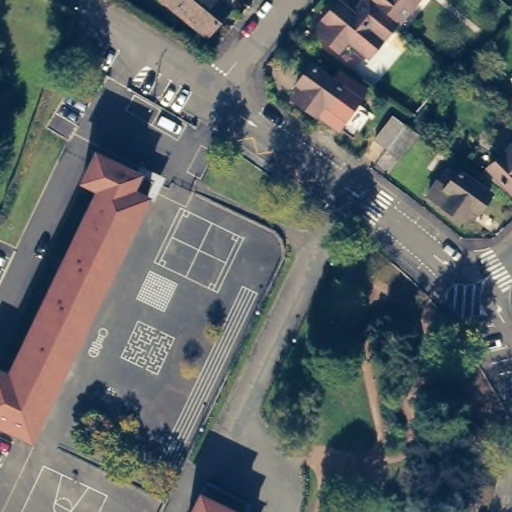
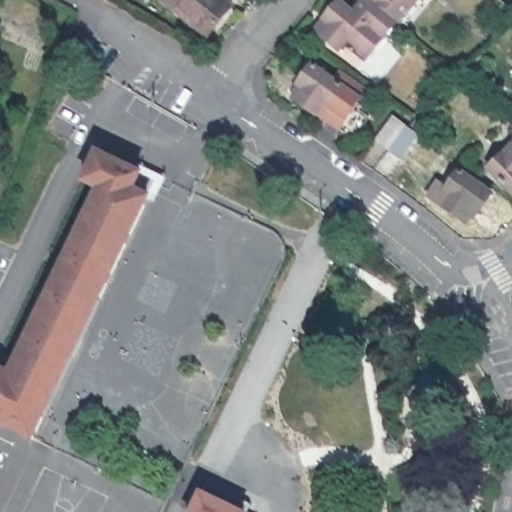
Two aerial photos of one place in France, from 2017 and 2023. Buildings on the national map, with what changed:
unchanged [(208,31),(170,0),(233,0),(208,31)]
unchanged [(334,9),(342,0),(359,0),(364,4),(367,0),(393,0),(408,12),(393,29),(392,29),(380,43),(366,32),(364,34),(358,29),(349,40),(329,23),(338,12),(334,9)]
unchanged [(393,0),(419,0),(409,13),(408,12),(393,0)]
unchanged [(299,74),(312,55),(344,78),(331,97),(324,91),(316,104),(294,88),(303,77),(299,74)]
unchanged [(401,154),(389,145),(376,136),(394,111),(407,121),(408,121),(419,129),(401,154)]
unchanged [(506,156),(493,143),(509,127),(512,131),(512,187),(494,168),(506,156)]
unchanged [(84,181),(97,154),(136,173),(139,174),(131,190),(148,198),(33,438),(0,422),(0,371),(10,375),(100,188),(84,181)]
unchanged [(434,190),(443,177),(452,184),(464,166),(496,189),(483,207),(479,204),(471,216),(449,201),(434,190)]
unchanged [(243,511),(243,512),(191,512),(201,491),(243,511)]

